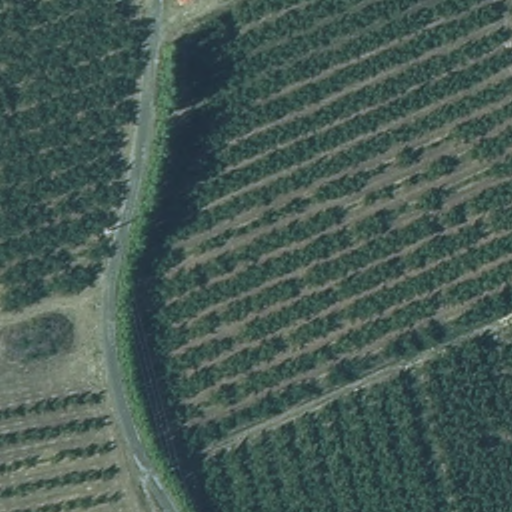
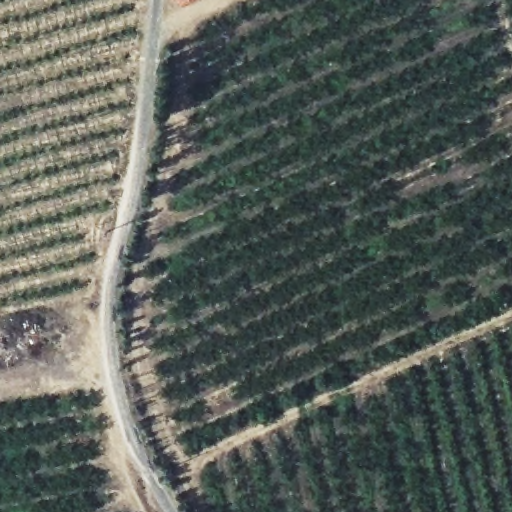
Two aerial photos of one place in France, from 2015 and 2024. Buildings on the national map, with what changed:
unchanged [(179,0),(189,0),(180,4),(179,0)]

